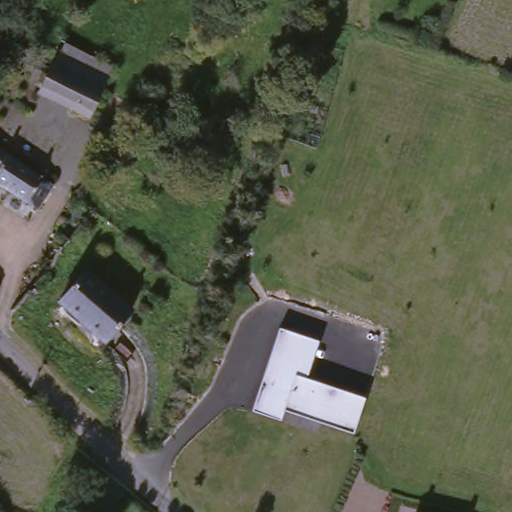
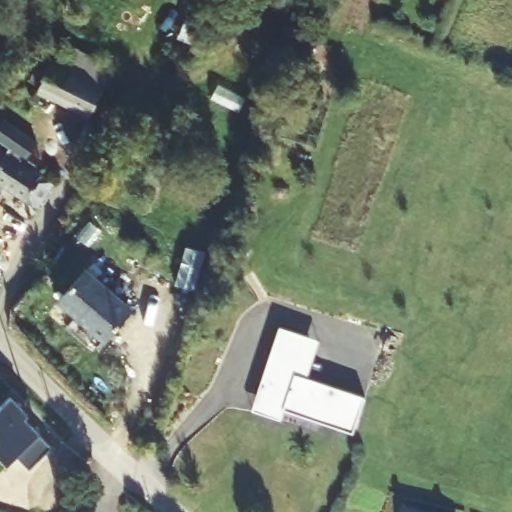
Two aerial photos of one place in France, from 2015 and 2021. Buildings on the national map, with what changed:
unchanged [(108,80),(94,108),(44,83),(61,55),(108,80)]
unchanged [(34,207),(0,185),(0,150),(48,184),(34,207)]
unchanged [(135,305),(111,341),(66,306),(89,272),(135,305)]
unchanged [(252,397),(260,378),(286,316),(313,328),(323,332),(308,368),(366,392),(351,427),(283,399),(279,408),(252,397)]
new [(9,467),(0,458),(0,410),(13,397),(31,416),(26,419),(41,436),(51,450),(31,470),(19,460),(9,467)]

